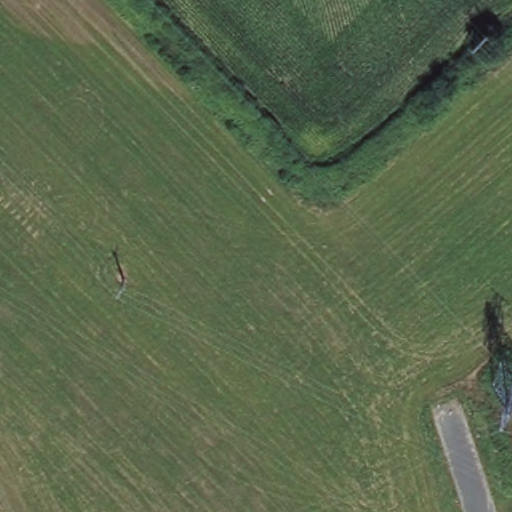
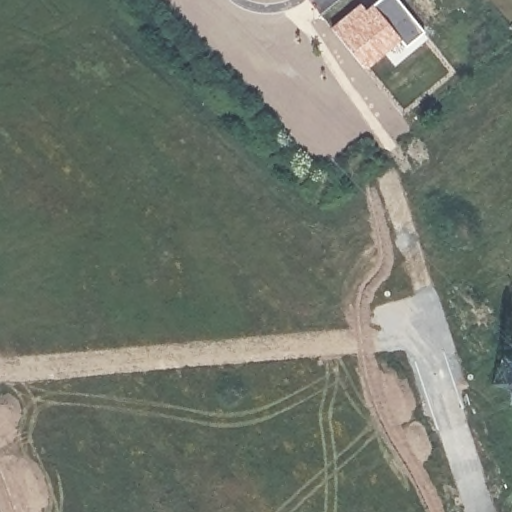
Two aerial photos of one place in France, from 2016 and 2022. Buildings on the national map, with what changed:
new [(368,15),(374,9),(372,7),(380,0),(397,0),(424,33),(405,48),(399,40),(363,69),(331,30),(361,6),(368,15)]

